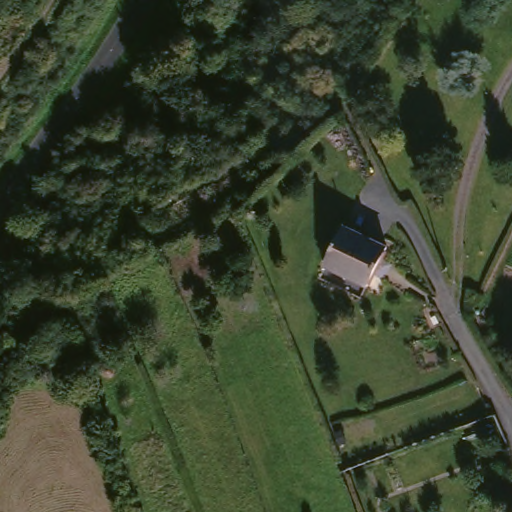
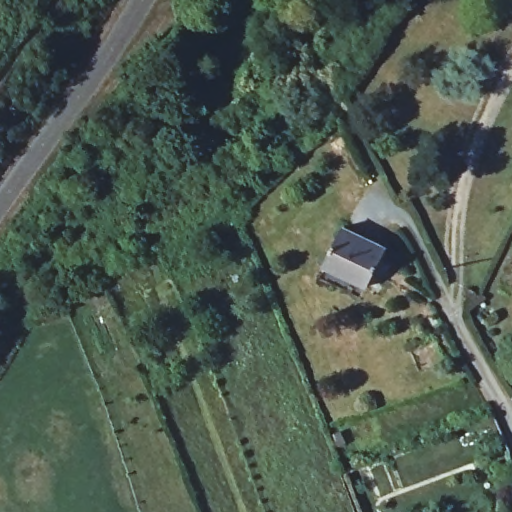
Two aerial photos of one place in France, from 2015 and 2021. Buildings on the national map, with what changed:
unchanged [(393,250),(376,290),(333,270),(351,230),(393,250)]

